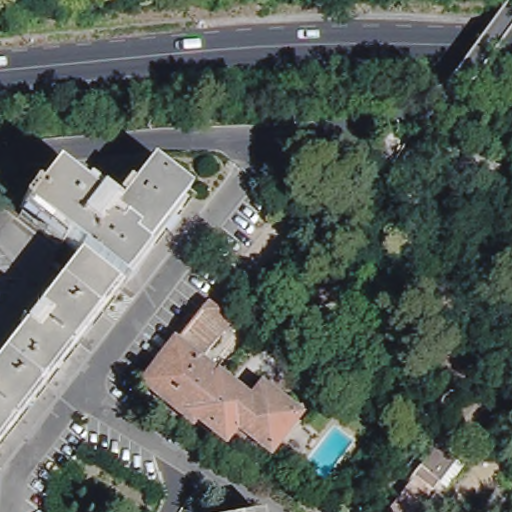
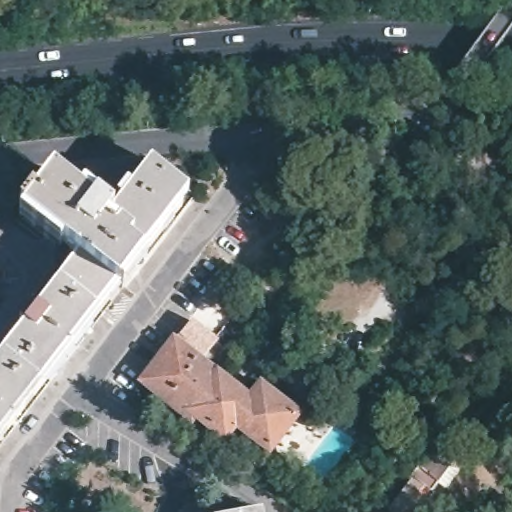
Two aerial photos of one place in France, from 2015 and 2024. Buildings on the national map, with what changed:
unchanged [(114,202),(152,153),(196,187),(150,246),(93,195),(98,189),(114,202)]
unchanged [(22,199),(33,185),(36,187),(55,164),(93,195),(150,246),(120,285),(73,254),(78,247),(65,236),(61,240),(22,209),(26,203),(22,199)]
unchanged [(25,317),(20,313),(32,297),(36,300),(73,254),(120,285),(0,441),(0,348),(25,317)]
unchanged [(173,343),(205,302),(228,320),(196,360),(173,343)]
unchanged [(193,413),(190,417),(143,381),(173,343),(196,360),(220,379),(193,413)]
unchanged [(250,401),(251,401),(252,401),(261,389),(295,416),(268,450),(233,423),(223,436),(193,413),(220,379),(250,401)]
unchanged [(396,500),(393,498),(421,463),(424,465),(442,442),(462,459),(468,464),(450,487),(444,482),(420,512),(390,512),(388,510),(396,500)]
unchanged [(268,512),(237,512),(267,506),(268,512)]

